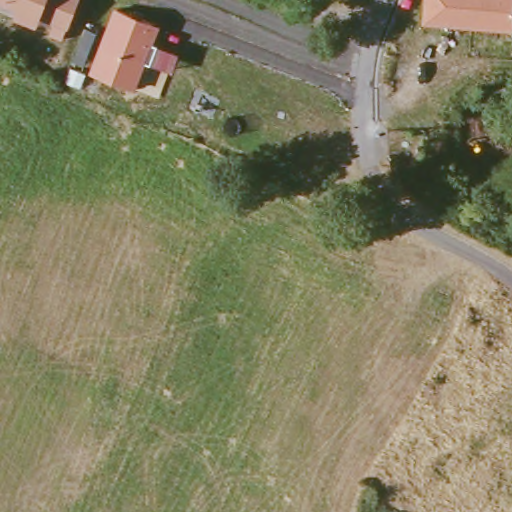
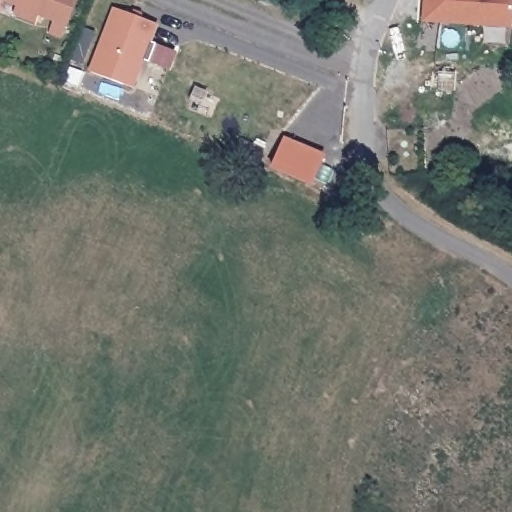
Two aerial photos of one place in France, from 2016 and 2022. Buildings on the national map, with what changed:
unchanged [(66,25),(38,13),(34,23),(10,14),(13,5),(1,0),(76,0),(66,25)]
unchanged [(423,0),(512,0),(512,29),(422,21),(423,0)]
unchanged [(89,72),(115,9),(160,26),(153,42),(178,52),(171,71),(145,62),(136,89),(89,72)]
new [(325,154),(311,186),(271,169),(285,137),(325,154)]

